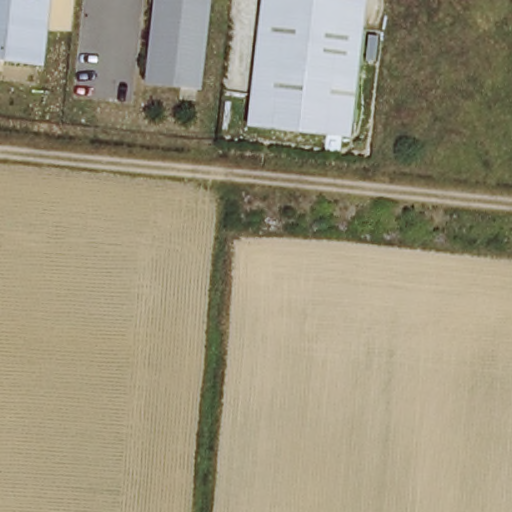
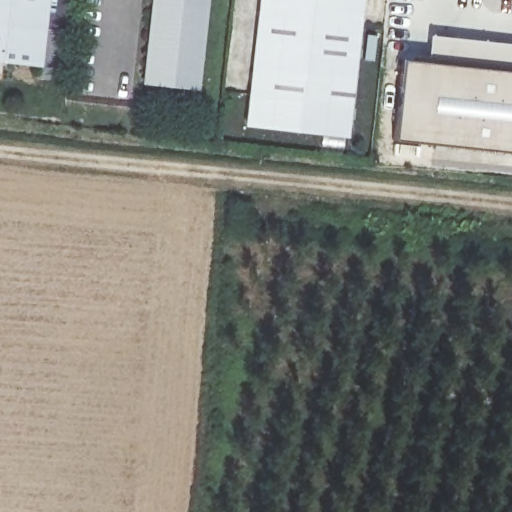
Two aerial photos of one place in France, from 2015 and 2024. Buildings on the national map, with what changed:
unchanged [(0,63),(0,0),(52,0),(45,67),(0,63)]
unchanged [(146,86),(156,0),(211,0),(202,95),(146,86)]
unchanged [(248,125),(262,0),(365,0),(349,136),(248,125)]
new [(425,62),(429,35),(512,43),(512,151),(394,139),(402,60),(425,62)]

